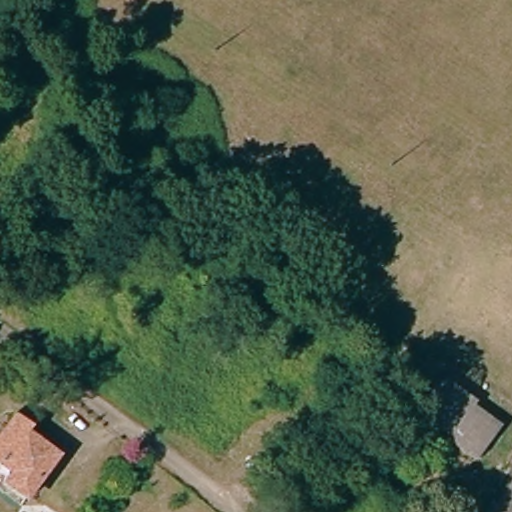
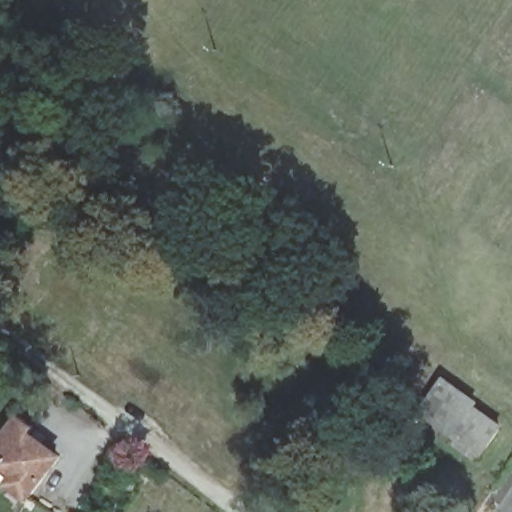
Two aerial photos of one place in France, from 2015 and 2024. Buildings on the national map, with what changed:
unchanged [(502,435),(483,460),(420,413),(443,382),(471,403),(467,408),(502,435)]
unchanged [(13,416),(70,458),(36,503),(19,490),(26,480),(0,461),(0,434),(13,416)]

